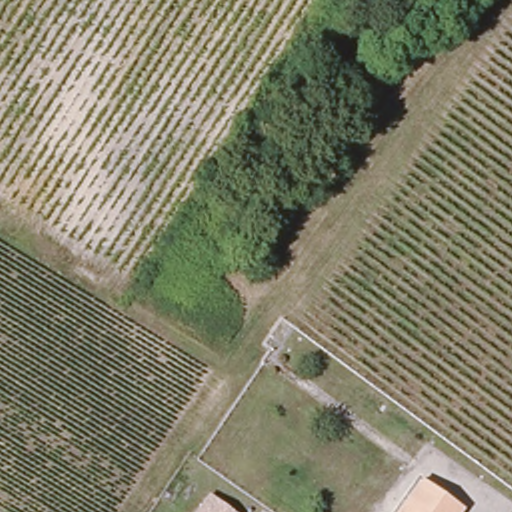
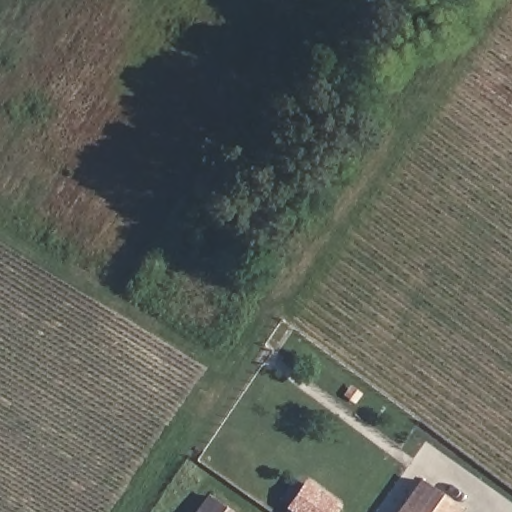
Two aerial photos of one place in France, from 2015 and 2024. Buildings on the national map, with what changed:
new [(337,512),(293,512),(286,507),(306,480),(342,505),(337,512)]
unchanged [(460,512),(403,512),(422,486),(460,512)]
unchanged [(230,512),(196,512),(207,495),(230,512)]

